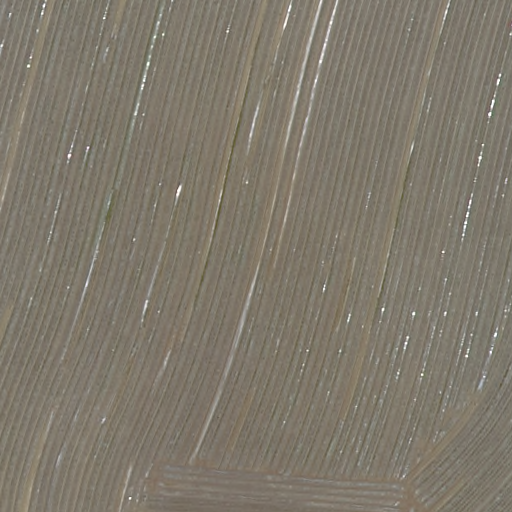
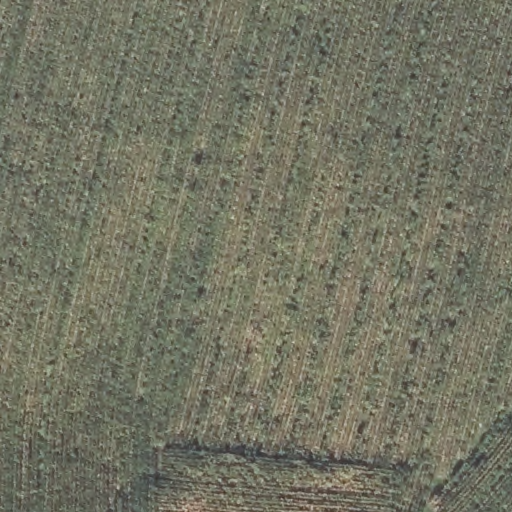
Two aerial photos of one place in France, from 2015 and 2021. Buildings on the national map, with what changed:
[]

